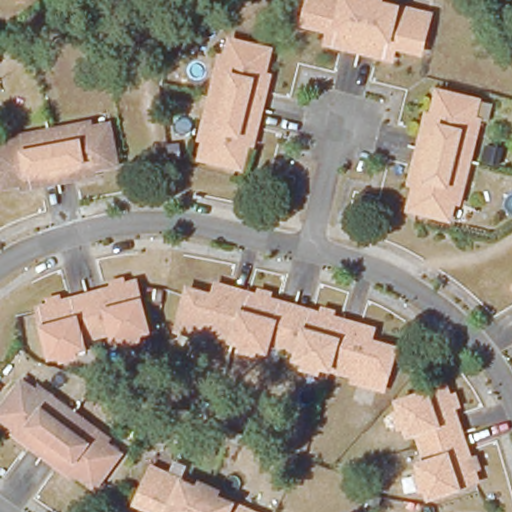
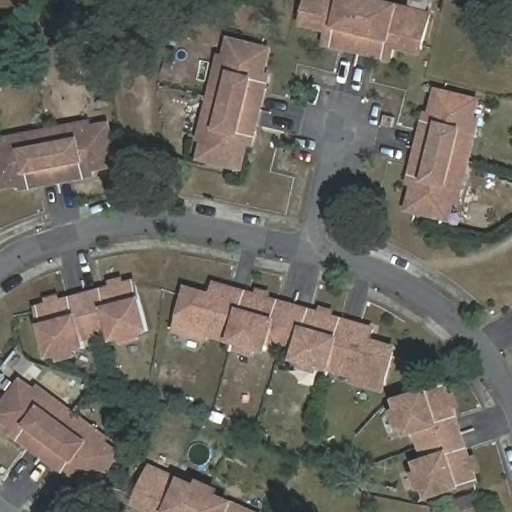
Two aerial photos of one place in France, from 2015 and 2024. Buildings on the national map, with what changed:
unchanged [(327,44),(331,26),(305,20),(309,0),(372,0),(360,51),(327,44)]
unchanged [(372,0),(431,14),(423,48),(396,42),(392,59),(360,51),(372,0)]
unchanged [(220,62),(230,65),(234,47),(265,55),(260,80),(268,82),(260,116),(210,104),(220,62)]
unchanged [(428,119),(437,121),(443,97),(475,105),(471,122),(480,125),(470,166),(420,154),(428,119)]
unchanged [(251,151),(242,149),(235,174),(204,165),(209,148),(199,145),(210,104),(260,116),(251,151)]
unchanged [(95,129),(97,137),(115,135),(120,166),(96,171),(98,180),(62,187),(53,136),(95,129)]
unchanged [(62,187),(27,194),(25,184),(1,189),(0,184),(0,156),(12,154),(11,144),(53,136),(62,187)]
unchanged [(470,166),(460,208),(450,206),(446,223),(415,215),(420,191),(411,189),(420,154),(470,166)]
unchanged [(101,291),(135,282),(149,330),(115,340),(111,327),(96,331),(89,303),(104,300),(101,291)]
unchanged [(233,351),(177,335),(186,303),(212,311),(216,295),(246,303),(233,351)]
unchanged [(81,335),(85,348),(51,357),(38,308),(72,300),(75,307),(89,303),(96,331),(81,335)]
unchanged [(270,348),(266,361),(233,351),(246,303),(280,313),(278,320),(293,325),(285,352),(270,348)]
unchanged [(310,321),(343,330),(330,379),(296,370),(300,356),(285,352),(293,325),(307,328),(310,321)]
unchanged [(373,339),(369,355),(395,362),(386,395),(330,379),(343,330),(373,339)]
unchanged [(48,460),(19,438),(25,430),(5,415),(25,389),(39,400),(45,392),(79,418),(48,460)]
unchanged [(426,435),(414,440),(402,407),(450,390),(461,424),(453,427),(458,441),(431,450),(426,435)]
unchanged [(79,418),(113,444),(107,451),(122,462),(102,488),(82,473),(76,481),(48,460),(79,418)]
unchanged [(471,452),(482,486),(435,502),(424,469),(436,465),(431,450),(458,441),(463,455),(471,452)]
unchanged [(212,492),(204,512),(168,512),(168,511),(142,500),(156,468),(212,492)]
unchanged [(212,492),(258,512),(204,512),(212,492)]

